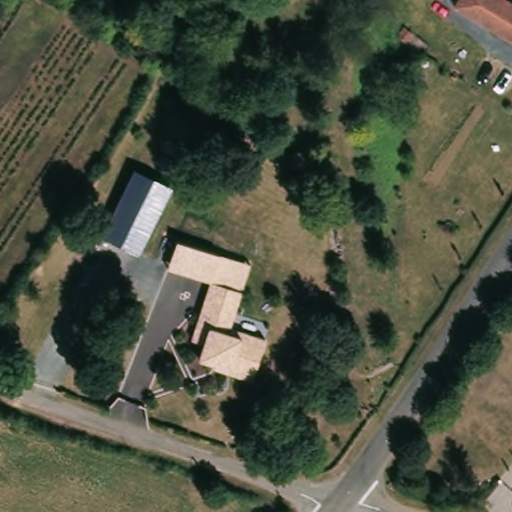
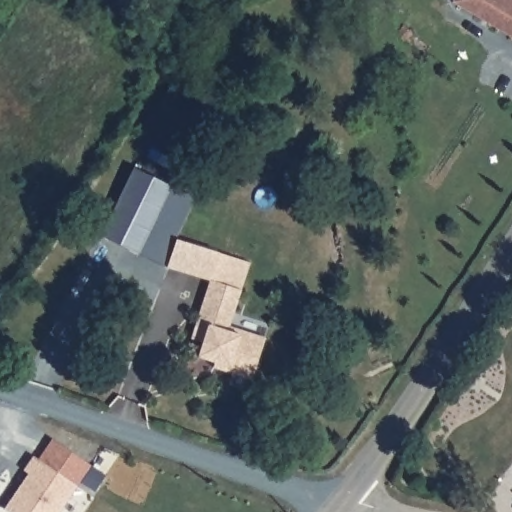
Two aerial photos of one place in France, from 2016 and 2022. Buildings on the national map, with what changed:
unchanged [(504,38),(453,0),(512,0),(512,27),(504,38)]
unchanged [(504,38),(512,27),(512,43),(504,38)]
unchanged [(172,187),(138,254),(101,235),(132,169),(172,187)]
unchanged [(166,267),(175,239),(248,262),(239,292),(207,281),(166,267)]
unchanged [(213,364),(211,364),(195,359),(200,344),(188,340),(207,281),(239,292),(227,328),(232,329),(265,340),(252,382),(227,374),(212,369),(213,364)]
new [(4,511),(28,473),(24,470),(34,456),(77,485),(59,512),(6,512),(4,511)]

